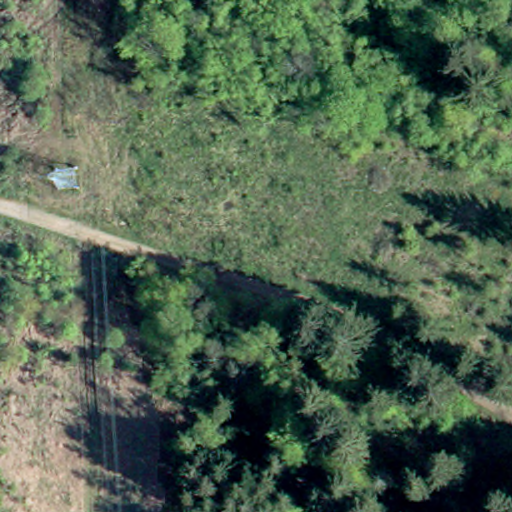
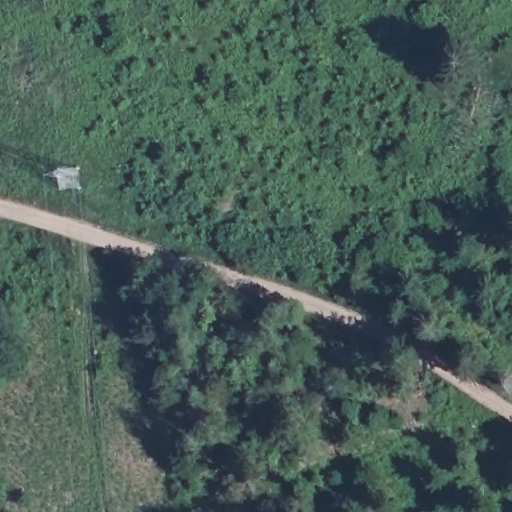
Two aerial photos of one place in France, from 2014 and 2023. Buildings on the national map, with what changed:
unchanged [(260,428),(254,447),(266,451),(262,463),(225,449),(235,420),(260,428)]

